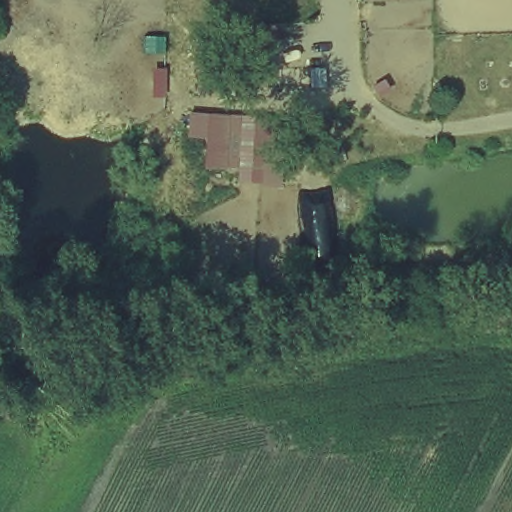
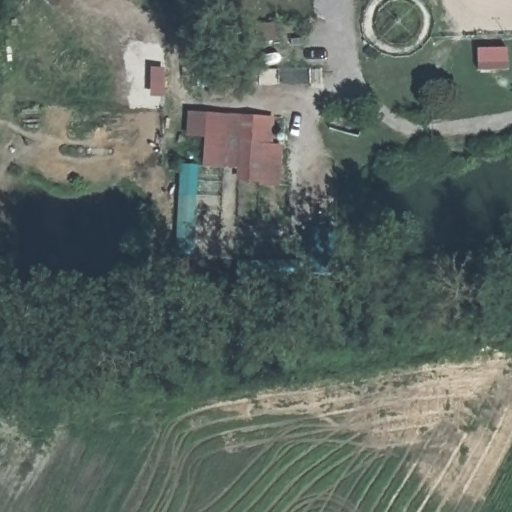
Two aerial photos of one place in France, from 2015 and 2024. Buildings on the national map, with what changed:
unchanged [(273,110),(272,146),(283,147),(282,178),(237,176),(238,166),(239,128),(240,112),(273,110)]
unchanged [(239,128),(238,166),(205,166),(206,111),(240,112),(239,128)]

